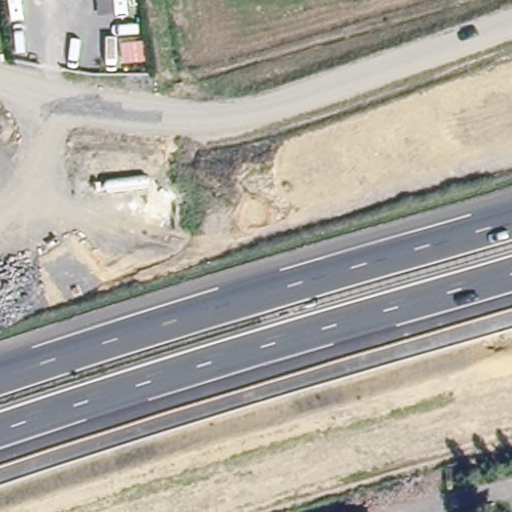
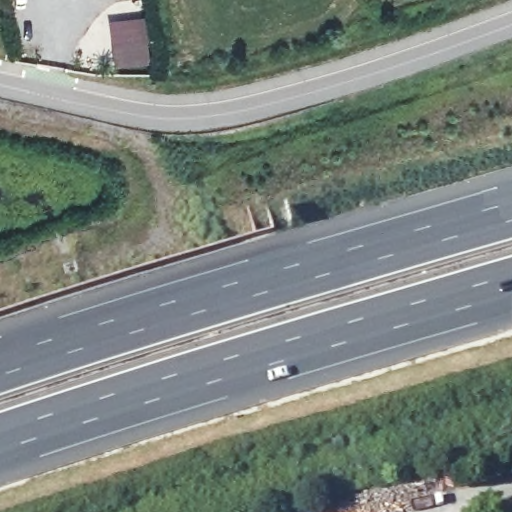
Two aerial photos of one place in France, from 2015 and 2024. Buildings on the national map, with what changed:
new [(141,17),(145,64),(110,69),(105,23),(141,17)]

